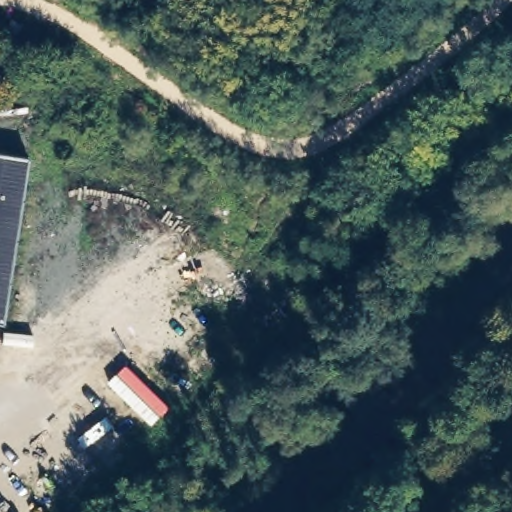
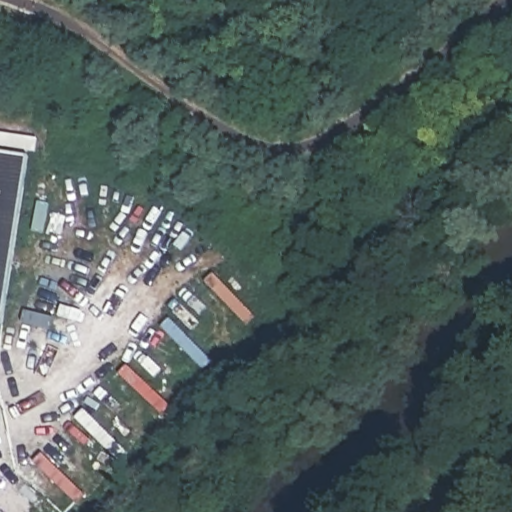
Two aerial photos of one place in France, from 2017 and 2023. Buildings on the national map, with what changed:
unchanged [(30,155),(4,319),(0,318),(0,151),(30,155)]

